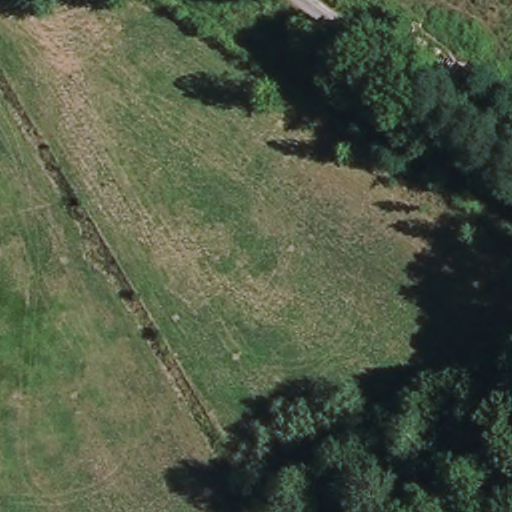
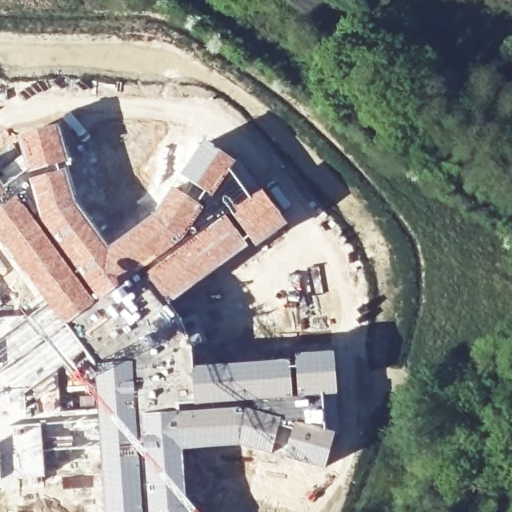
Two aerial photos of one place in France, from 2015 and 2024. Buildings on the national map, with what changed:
new [(57,125),(68,165),(65,166),(27,176),(17,137),(57,125)]
new [(286,225),(255,248),(229,212),(215,195),(212,199),(179,177),(204,140),(238,164),(230,173),(249,197),(260,189),(286,225)]
new [(65,166),(66,167),(76,203),(106,248),(152,213),(175,186),(205,208),(188,234),(175,247),(141,272),(97,304),(39,220),(27,176),(65,166)]
new [(6,192),(0,197),(0,184),(6,192)]
new [(16,197),(36,222),(39,220),(97,304),(65,327),(15,262),(0,240),(0,209),(16,197)]
new [(175,247),(188,234),(191,237),(224,215),(247,247),(220,268),(166,306),(141,272),(175,247)]
new [(4,302),(0,305),(0,297),(4,302)]
new [(334,350),(337,398),(325,399),(293,398),(293,358),(292,354),(334,350)]
new [(293,358),(293,398),(232,406),(191,409),(190,394),(187,366),(293,358)]
new [(134,361),(135,376),(135,382),(137,414),(191,409),(232,406),(248,407),(282,419),(273,451),(271,456),(238,448),(183,452),(187,499),(196,512),(103,512),(100,485),(93,372),(111,367),(134,361)]
new [(171,382),(171,386),(180,386),(180,391),(181,391),(182,395),(190,394),(191,409),(137,414),(135,382),(171,382)]
new [(293,398),(325,399),(327,428),(332,429),(332,431),(335,431),(324,470),(273,451),(282,419),(248,407),(232,406),(293,398)]
new [(42,425),(45,475),(19,477),(14,429),(42,425)]

